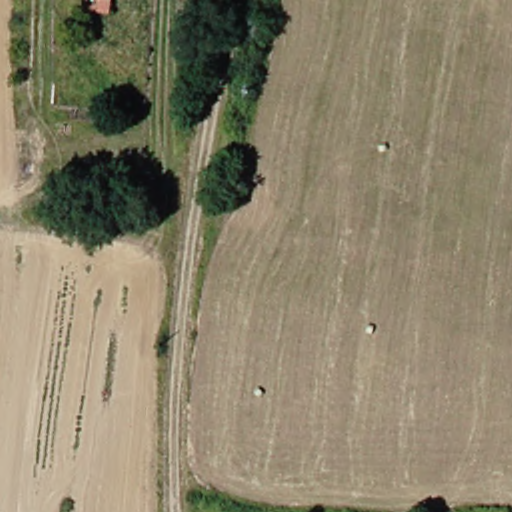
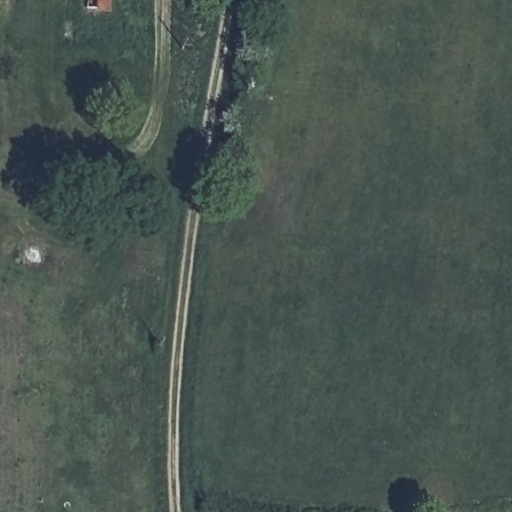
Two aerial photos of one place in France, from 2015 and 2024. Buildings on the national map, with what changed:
unchanged [(100,16),(75,11),(78,0),(103,0),(100,16)]

